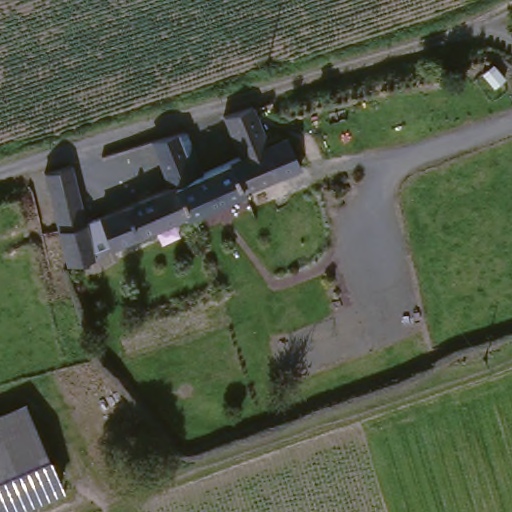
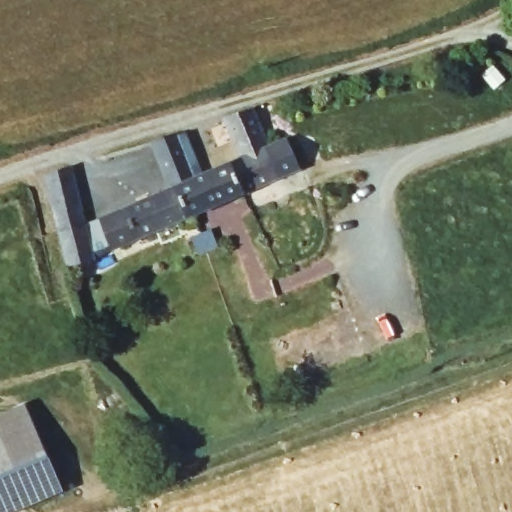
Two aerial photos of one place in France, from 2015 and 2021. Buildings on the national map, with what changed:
unchanged [(283,144),(294,172),(273,182),(183,222),(173,190),(164,194),(146,147),(179,137),(196,180),(236,164),(218,124),(247,114),(252,125),(263,151),(283,144)]
unchanged [(93,261),(69,266),(66,266),(43,174),(71,166),(93,261)]
unchanged [(106,256),(94,225),(164,194),(173,190),(183,222),(106,256)]
unchanged [(4,512),(0,512),(0,415),(23,405),(58,488),(4,512)]

